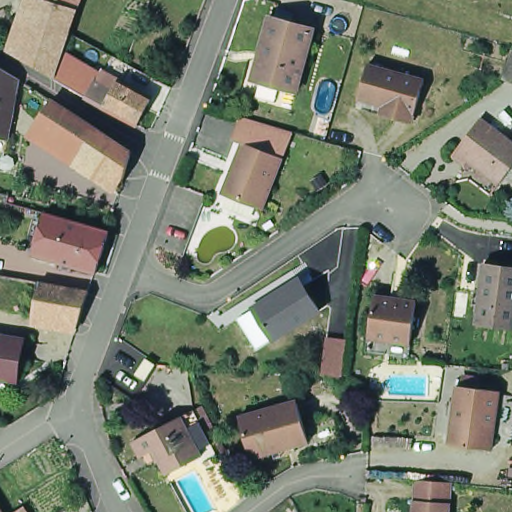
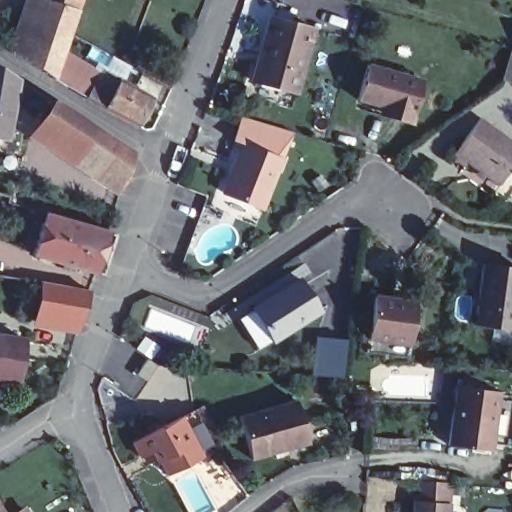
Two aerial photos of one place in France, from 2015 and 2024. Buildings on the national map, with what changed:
unchanged [(20,54),(38,0),(76,0),(52,72),(20,54)]
unchanged [(267,56),(262,55),(272,15),(316,26),(297,92),(260,81),(267,56)]
unchanged [(80,64),(72,85),(56,75),(55,73),(61,53),(80,64)]
unchanged [(384,101),(360,95),(368,62),(424,77),(412,120),(391,115),(381,112),(384,101)]
unchanged [(0,68),(18,79),(16,94),(7,139),(0,137),(0,68)]
unchanged [(110,102),(91,91),(100,74),(120,85),(125,75),(157,94),(142,120),(110,102)]
unchanged [(107,175),(93,167),(85,156),(32,122),(47,100),(100,134),(110,140),(115,145),(127,152),(117,182),(107,175)]
unchanged [(483,114),(512,135),(512,167),(502,181),(470,159),(467,162),(454,154),(483,114)]
unchanged [(246,140),(232,135),(241,115),(294,131),(286,157),(246,140)]
unchanged [(241,148),(280,162),(262,212),(222,197),(241,148)]
unchanged [(45,209),(109,226),(96,267),(33,249),(45,209)]
unchanged [(482,261),(512,265),(512,324),(474,320),(482,261)]
unchanged [(262,345),(237,305),(300,266),(306,275),(261,303),(280,335),(262,345)]
unchanged [(326,306),(280,335),(261,303),(306,275),(326,306)]
unchanged [(62,286),(63,290),(88,296),(79,327),(32,320),(39,286),(44,286),(44,283),(62,286)]
unchanged [(365,341),(366,328),(372,285),(417,290),(411,333),(409,347),(365,341)]
unchanged [(0,337),(11,339),(5,380),(3,389),(0,388),(0,337)]
unchanged [(319,375),(324,337),(344,340),(339,378),(319,375)]
unchanged [(124,361),(133,367),(126,378),(116,372),(124,361)]
unchanged [(455,381),(499,386),(491,446),(447,440),(455,381)]
unchanged [(293,398),(305,440),(249,455),(237,415),(293,398)]
unchanged [(137,447),(125,454),(117,438),(165,413),(178,406),(202,453),(189,460),(186,454),(150,472),(137,447)]
unchanged [(416,480),(454,483),(452,502),(451,512),(414,512),(415,500),(416,480)]
unchanged [(0,512),(0,508),(3,512),(0,512)]

